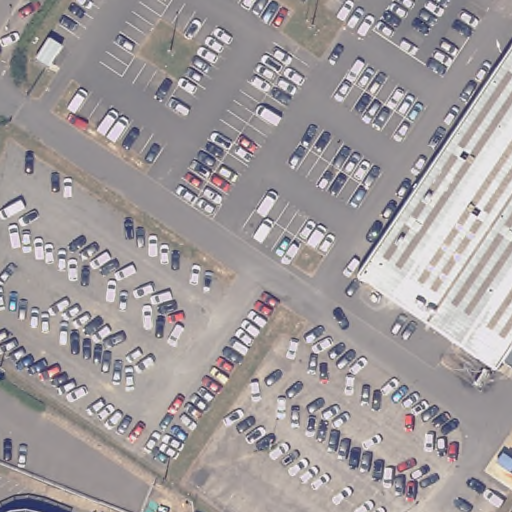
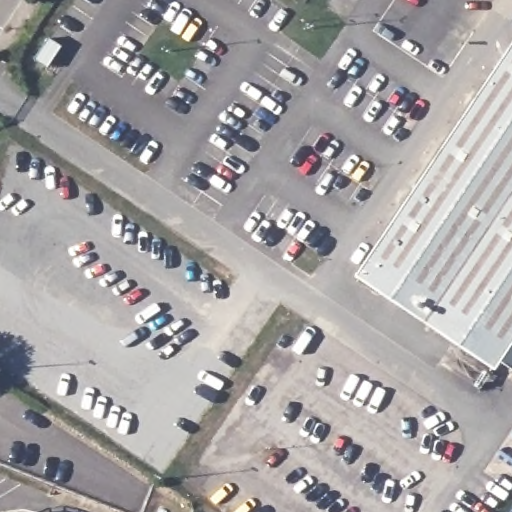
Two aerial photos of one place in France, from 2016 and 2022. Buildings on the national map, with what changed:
unchanged [(46,34),(61,44),(44,69),(29,57),(46,34)]
unchanged [(508,300),(502,307),(395,233),(512,59),(512,302),(508,300)]
unchanged [(503,363),(498,371),(364,278),(395,233),(502,307),(508,300),(512,302),(512,370),(503,363)]
unchanged [(357,435),(368,441),(361,452),(349,445),(357,435)]

